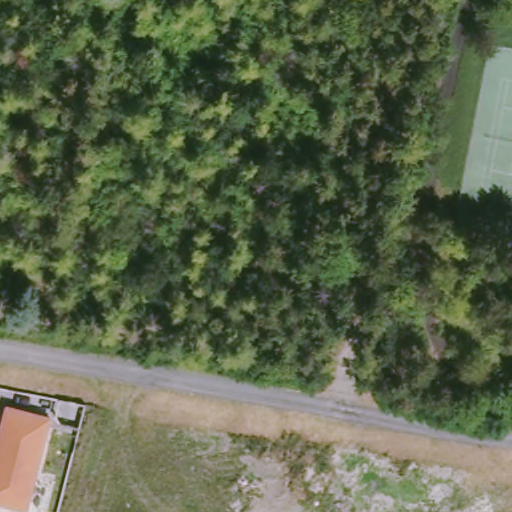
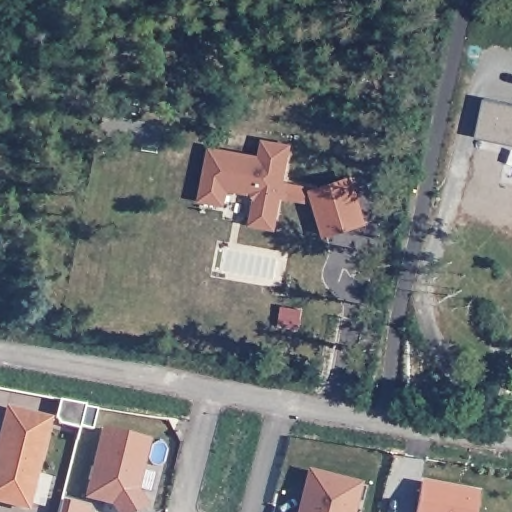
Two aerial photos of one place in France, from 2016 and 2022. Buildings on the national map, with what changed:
new [(485,99),(512,103),(512,144),(477,138),(485,99)]
new [(252,224),(256,194),(229,189),(227,205),(200,200),(209,148),(260,155),(263,139),(292,144),(286,183),(317,188),(356,175),(370,223),(326,237),(317,203),(283,198),(277,230),(252,224)]
unchanged [(27,506),(0,499),(0,423),(5,402),(52,414),(27,506)]
new [(136,512),(115,512),(111,505),(84,498),(102,427),(150,439),(139,489),(147,506),(136,512)]
new [(362,483),(354,512),(297,512),(307,469),(362,483)]
new [(423,482),(480,492),(476,512),(417,512),(423,482)]

